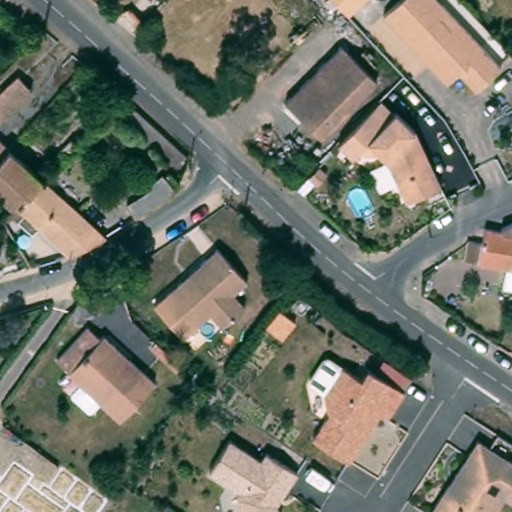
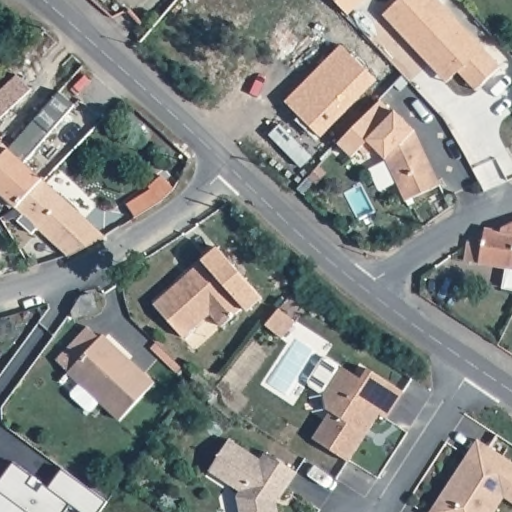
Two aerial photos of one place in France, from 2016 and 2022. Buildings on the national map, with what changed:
new [(335,0),(361,0),(348,13),(335,0)]
unchanged [(451,77),(434,59),(389,10),(399,0),(448,0),(448,1),(504,63),(487,79),(479,86),(463,67),(451,77)]
unchanged [(342,45),(377,80),(322,135),(287,101),(342,45)]
unchanged [(28,91),(0,121),(0,91),(13,77),(28,91)]
unchanged [(389,112),(391,111),(411,129),(434,185),(399,200),(383,158),(377,152),(361,152),(357,149),(349,157),(334,143),(376,100),(389,112)]
unchanged [(0,145),(0,141),(2,142),(0,144),(0,145)]
unchanged [(0,196),(0,145),(0,144),(2,142),(3,144),(40,177),(41,177),(12,207),(0,196)]
unchanged [(76,248),(65,254),(56,247),(39,235),(32,242),(9,222),(4,226),(0,221),(0,215),(1,214),(10,209),(12,207),(41,177),(99,232),(76,248)]
unchanged [(144,202),(121,221),(113,225),(104,215),(141,187),(149,197),(144,202)]
unchanged [(464,265),(469,246),(481,247),(483,232),(512,218),(512,274),(464,265)]
unchanged [(194,253),(227,283),(215,296),(228,308),(209,328),(196,317),(173,342),(140,312),(194,253)]
unchanged [(91,327),(138,373),(105,410),(89,396),(78,407),(60,389),(70,377),(56,365),(91,327)]
unchanged [(298,443),(315,417),(310,415),(308,400),(327,372),(346,385),(353,374),(388,397),(371,424),(364,420),(333,466),(298,443)]
unchanged [(222,501),(225,495),(194,475),(214,443),(245,465),(251,456),(282,477),(270,495),(266,492),(258,505),(262,507),(262,512),(225,512),(222,501)]
unchanged [(459,445),(511,479),(512,480),(512,504),(507,512),(504,512),(493,505),(487,500),(478,512),(416,512),(459,445)]
new [(14,462),(32,476),(26,483),(39,492),(44,483),(49,487),(63,468),(105,501),(97,512),(82,512),(70,503),(64,512),(0,512),(0,478),(14,462)]

